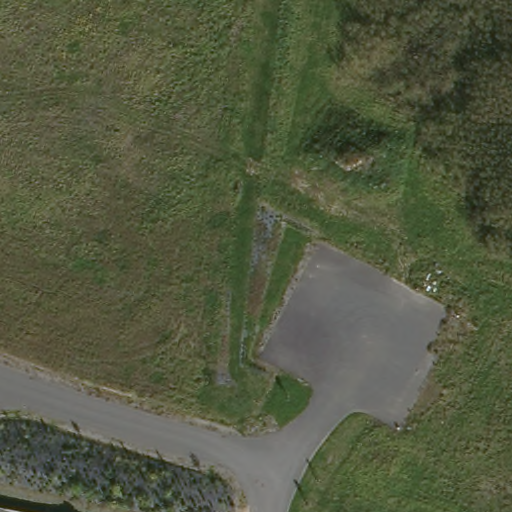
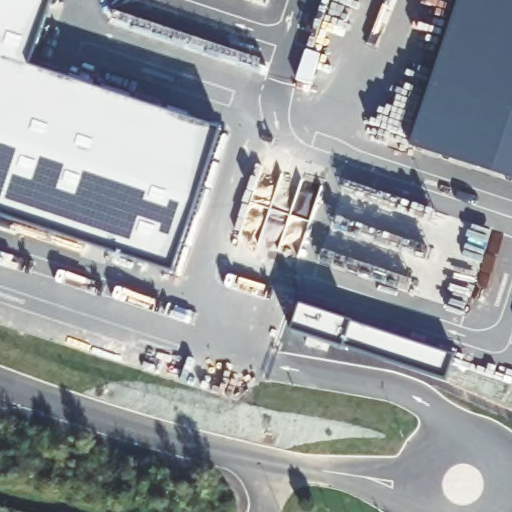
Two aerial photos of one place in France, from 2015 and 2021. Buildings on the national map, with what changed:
new [(166,114),(151,161),(207,180),(175,278),(0,219),(0,0),(52,0),(30,68),(166,114)]
new [(414,145),(461,0),(512,0),(512,178),(414,145)]
new [(166,114),(223,133),(207,180),(151,161),(166,114)]
new [(454,361),(448,384),(347,351),(346,354),(294,334),(302,309),(454,361)]

